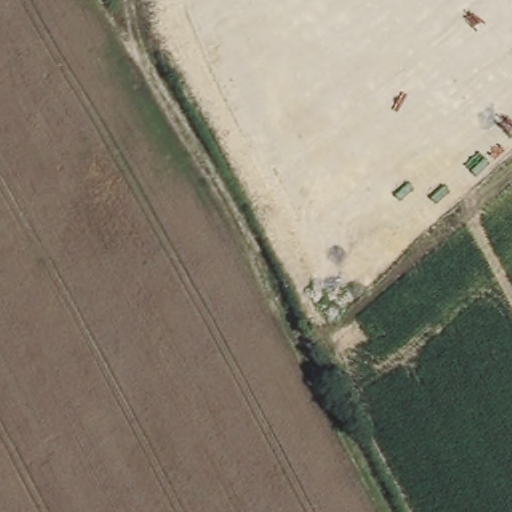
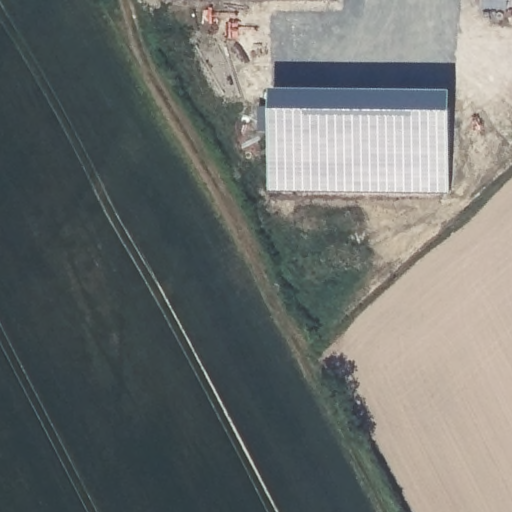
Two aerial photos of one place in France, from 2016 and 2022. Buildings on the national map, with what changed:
new [(507,6),(483,6),(483,0),(507,0),(507,6)]
new [(259,129),(260,105),(271,105),(451,107),(450,192),(269,190),(270,129),(259,129)]

